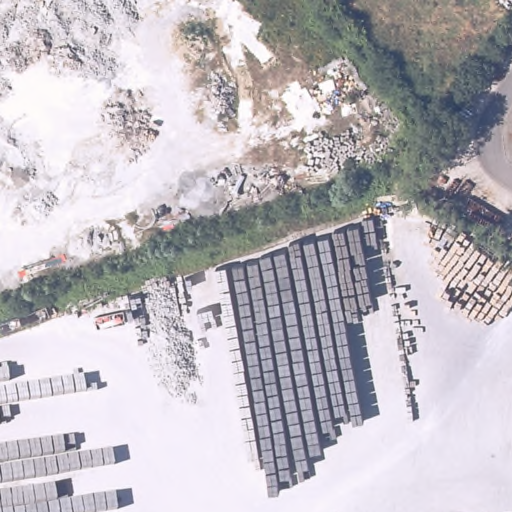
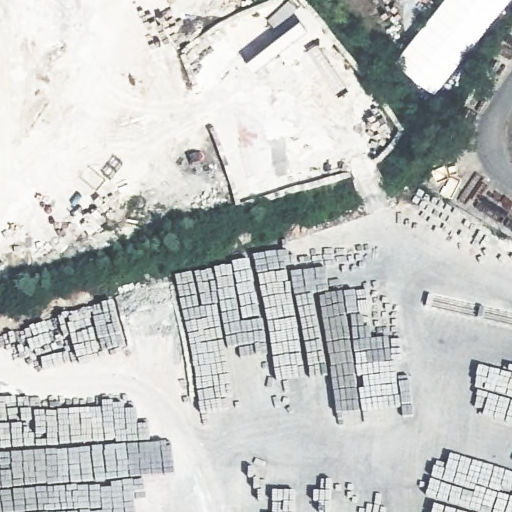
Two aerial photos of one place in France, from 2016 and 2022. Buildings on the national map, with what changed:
new [(432,91),(391,60),(439,0),(506,0),(432,91)]

